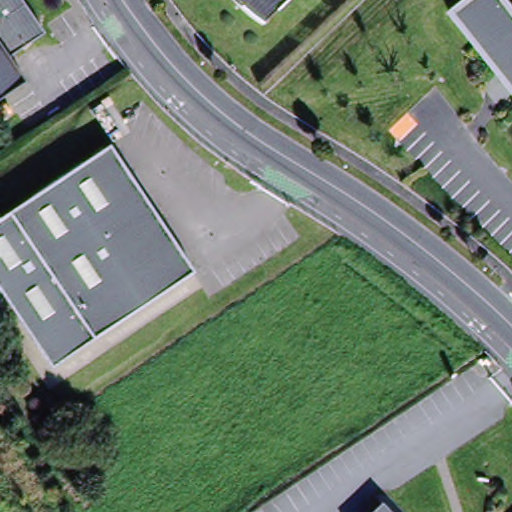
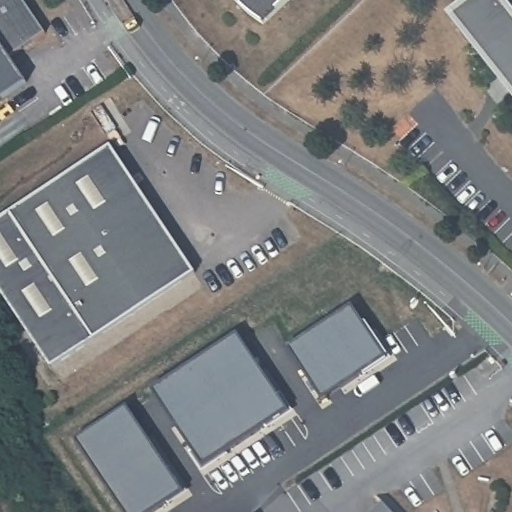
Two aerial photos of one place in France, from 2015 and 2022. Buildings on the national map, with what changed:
unchanged [(25,85),(0,101),(0,0),(23,0),(46,35),(9,60),(25,85)]
unchanged [(246,11),(236,1),(236,0),(298,0),(268,29),(246,11)]
unchanged [(466,0),(502,0),(512,12),(512,90),(451,12),(466,0)]
unchanged [(0,295),(0,221),(112,149),(196,278),(50,372),(0,295)]
new [(390,363),(325,406),(290,355),(355,310),(390,363)]
new [(202,467),(151,391),(236,335),(287,412),(202,467)]
new [(186,498),(165,512),(120,512),(77,448),(130,413),(186,498)]
unchanged [(386,507),(391,512),(381,512),(386,507)]

